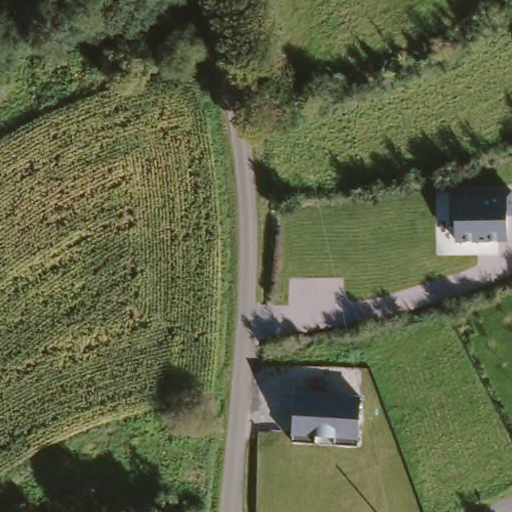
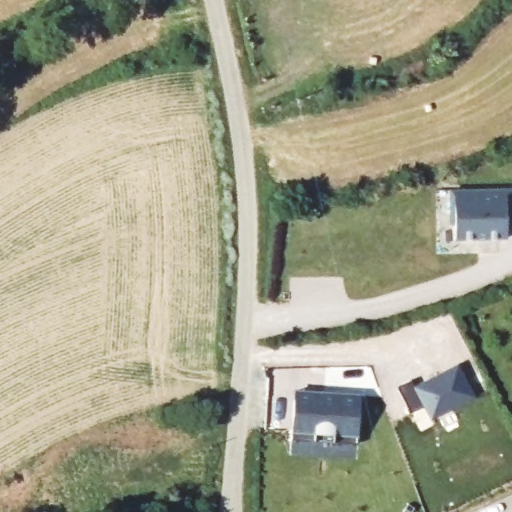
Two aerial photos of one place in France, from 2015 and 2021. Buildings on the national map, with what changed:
unchanged [(449,223),(450,188),(512,188),(512,214),(508,214),(509,240),(456,240),(455,223),(449,223)]
new [(412,382),(415,386),(460,364),(477,397),(431,420),(424,406),(411,413),(399,389),(412,382)]
unchanged [(295,391),(362,395),(360,438),(292,436),(295,391)]

